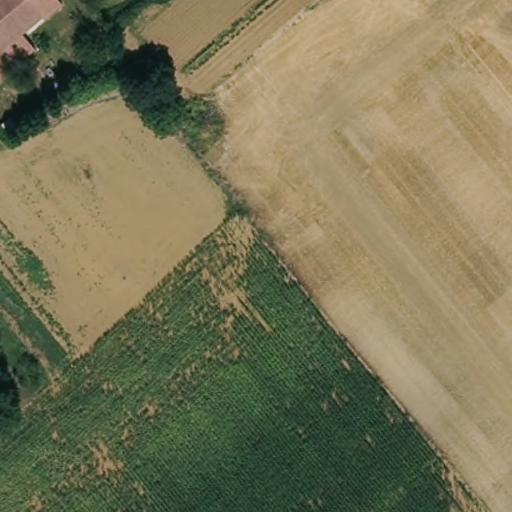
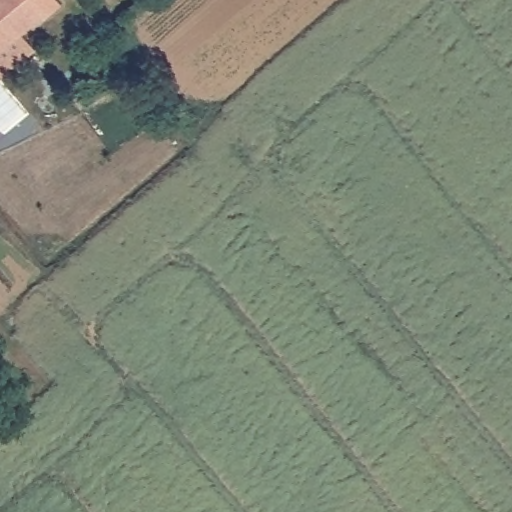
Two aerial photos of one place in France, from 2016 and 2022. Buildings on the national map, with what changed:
unchanged [(50,0),(56,9),(38,23),(36,21),(0,49),(0,0),(50,0)]

